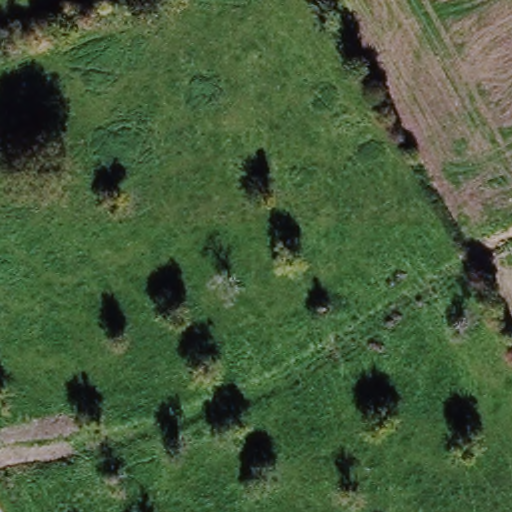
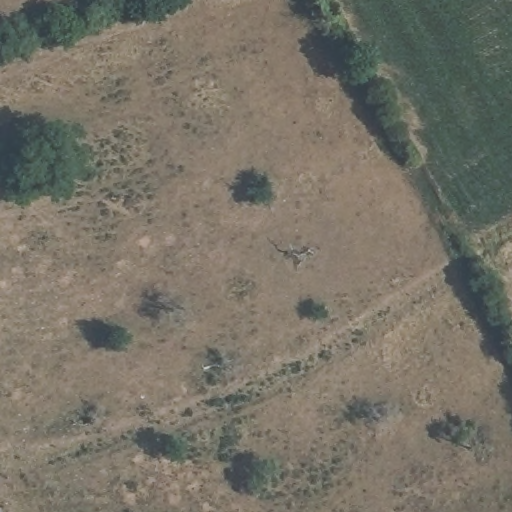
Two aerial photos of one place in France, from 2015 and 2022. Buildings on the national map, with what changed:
[]

